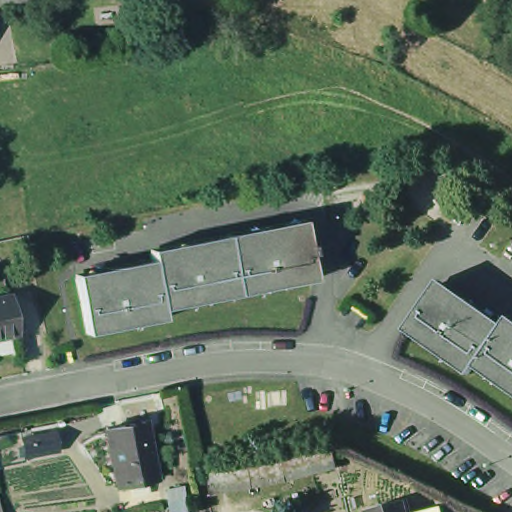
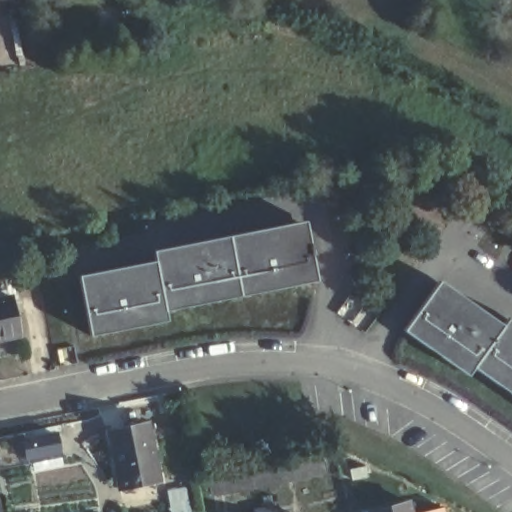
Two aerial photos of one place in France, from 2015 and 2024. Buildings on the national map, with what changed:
unchanged [(0,7),(0,0),(32,0),(0,7)]
unchanged [(317,246),(319,255),(316,255),(321,281),(170,312),(172,321),(95,336),(85,281),(161,266),(158,256),(310,227),(314,247),(317,246)]
unchanged [(472,368),(466,376),(403,331),(435,285),(500,330),(505,322),(512,326),(512,396),(472,368)]
unchanged [(0,294),(11,292),(19,332),(0,335),(0,294)]
unchanged [(119,489),(107,432),(147,424),(158,482),(119,489)]
unchanged [(55,436),(58,453),(27,459),(24,442),(55,436)]
unchanged [(335,443),(344,476),(212,502),(206,469),(335,443)]
unchanged [(13,512),(0,512),(0,492),(8,491),(13,512)]
unchanged [(368,508),(407,498),(411,512),(370,512),(368,508)]
unchanged [(424,508),(441,503),(444,512),(420,512),(425,511),(424,508)]

